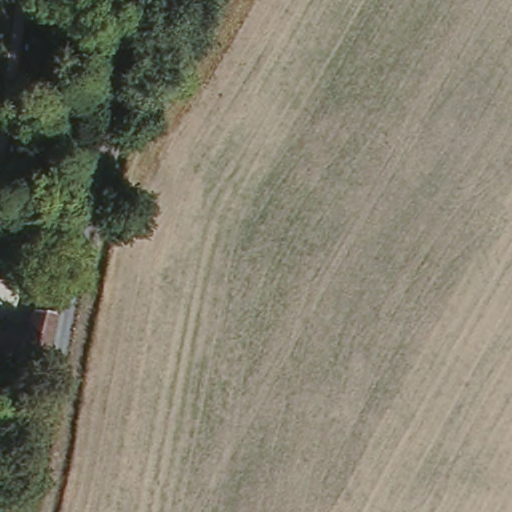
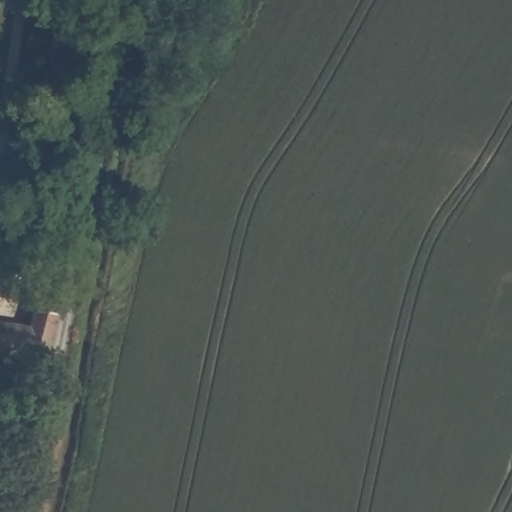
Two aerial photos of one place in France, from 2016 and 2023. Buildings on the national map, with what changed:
unchanged [(0,355),(0,328),(0,326),(25,330),(28,313),(55,317),(45,363),(0,355)]

